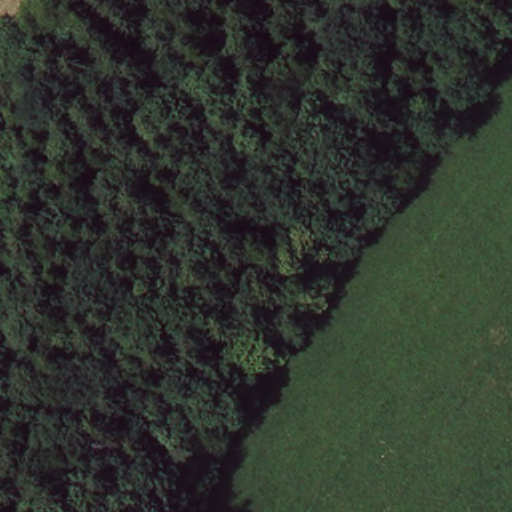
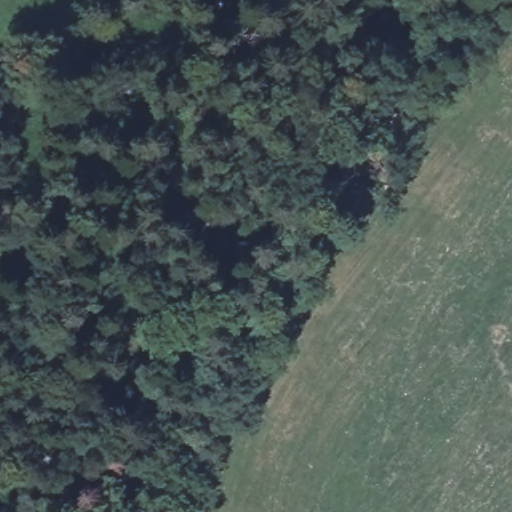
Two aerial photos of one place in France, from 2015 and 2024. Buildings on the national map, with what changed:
[]

